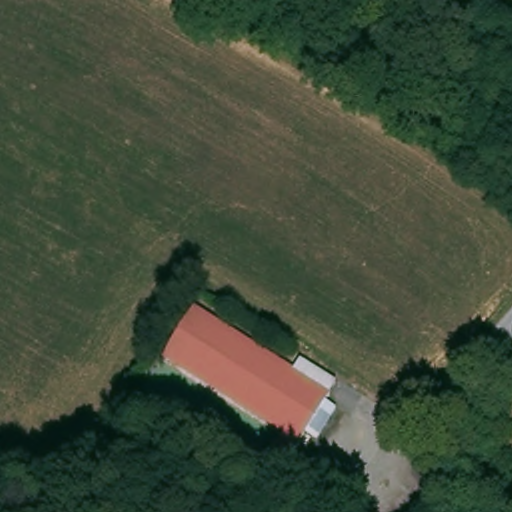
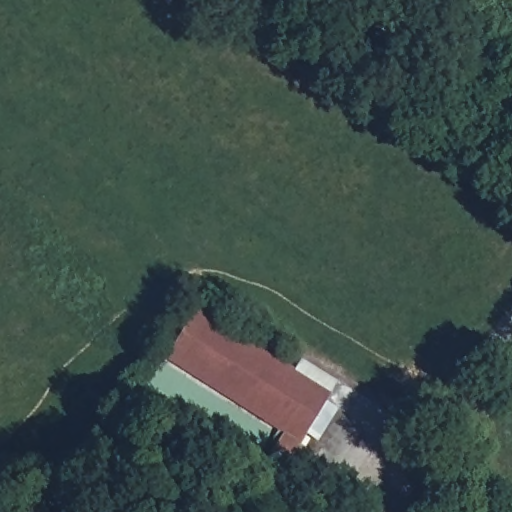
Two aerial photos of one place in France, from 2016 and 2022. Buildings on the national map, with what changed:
unchanged [(332,393),(281,480),(260,470),(283,431),(164,358),(197,308),(332,393)]

